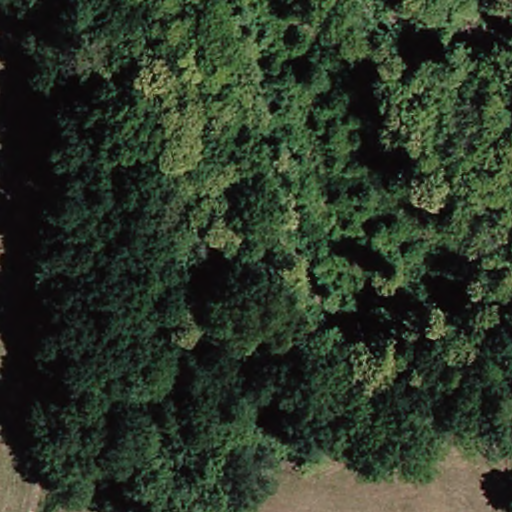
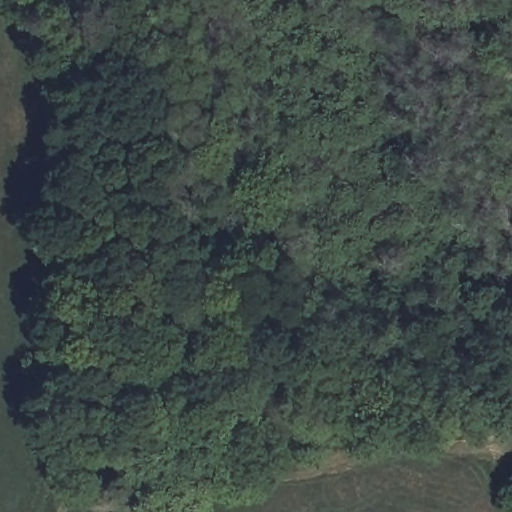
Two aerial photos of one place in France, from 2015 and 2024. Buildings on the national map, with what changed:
[]

